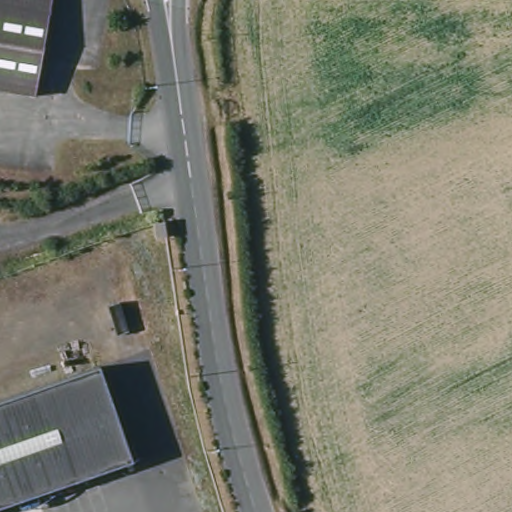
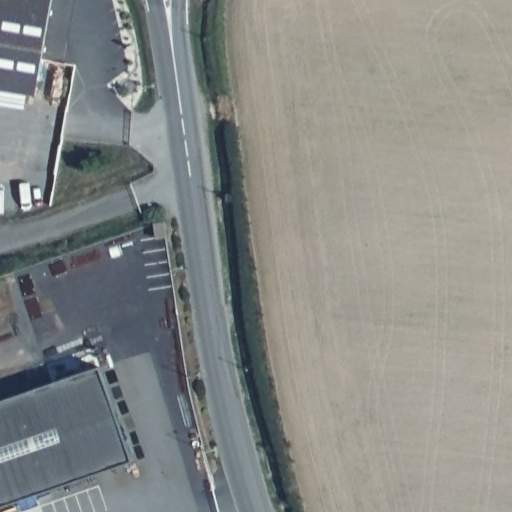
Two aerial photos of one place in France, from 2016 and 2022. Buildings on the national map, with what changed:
unchanged [(36,98),(0,92),(0,0),(53,0),(36,98)]
unchanged [(101,365),(134,460),(0,506),(0,399),(101,365)]

